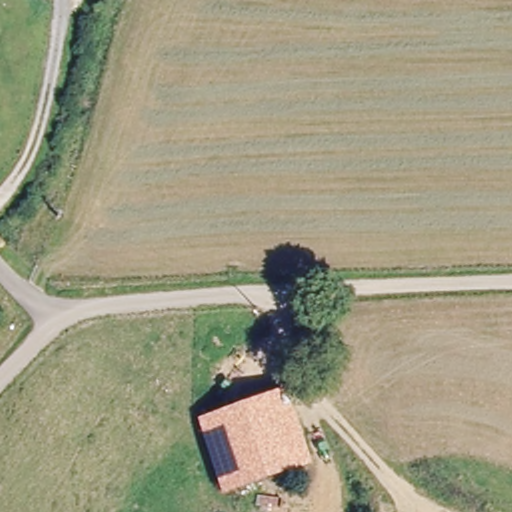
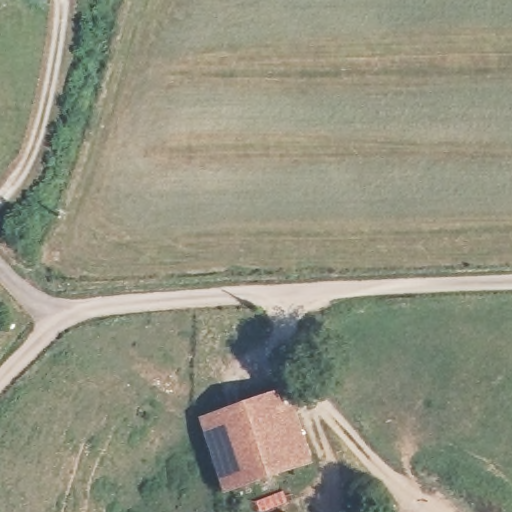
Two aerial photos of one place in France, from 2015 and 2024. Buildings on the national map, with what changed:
unchanged [(309,461),(282,471),(227,491),(204,425),(262,402),(260,395),(282,385),(309,461)]

